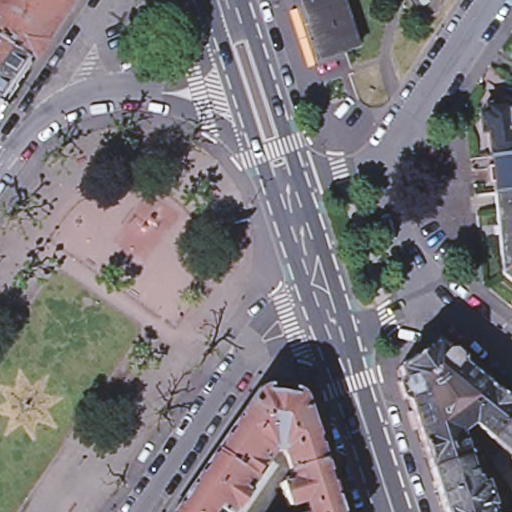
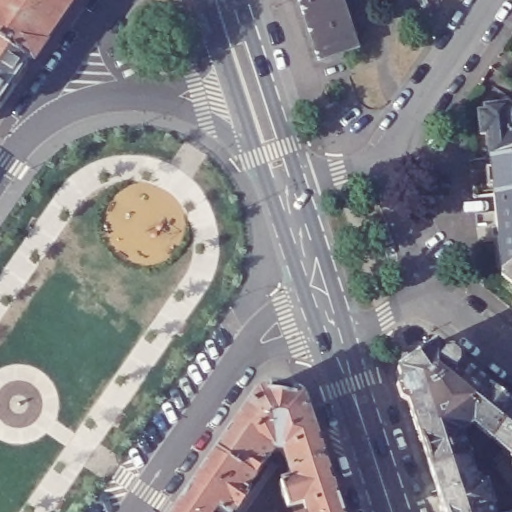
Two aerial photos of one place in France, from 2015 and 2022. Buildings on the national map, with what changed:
unchanged [(0,41),(0,0),(60,0),(21,56),(0,41)]
unchanged [(344,53),(318,61),(299,0),(342,0),(357,49),(344,53)]
unchanged [(0,87),(0,41),(21,56),(0,87)]
unchanged [(489,185),(484,186),(483,170),(487,169),(486,159),(484,135),(477,136),(475,114),(482,114),(481,109),(502,106),(502,108),(509,114),(510,113),(511,112),(512,111),(512,261),(498,272),(489,195),(489,185)]
unchanged [(498,275),(498,272),(512,261),(512,286),(498,275)]
unchanged [(445,343),(512,399),(512,425),(500,440),(483,425),(472,434),(479,457),(441,469),(408,369),(445,343)]
unchanged [(323,461),(290,472),(284,451),(273,449),(253,477),(216,452),(256,393),(259,391),(262,390),(269,389),(301,393),(323,461)]
unchanged [(500,440),(512,425),(512,450),(500,440)]
unchanged [(216,452),(253,477),(246,489),(250,492),(236,512),(233,509),(231,512),(220,512),(215,509),(213,512),(175,512),(216,452)]
unchanged [(479,457),(486,479),(488,478),(490,485),(496,483),(504,507),(500,508),(502,512),(455,512),(441,469),(479,457)]
unchanged [(340,512),(306,512),(304,502),(286,507),(279,484),(293,480),(290,472),(323,461),(340,512)]

